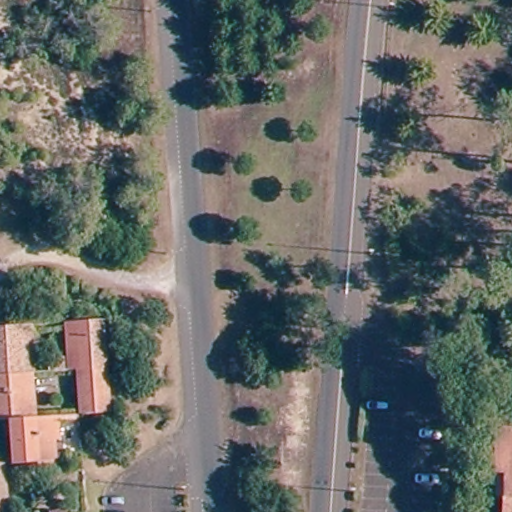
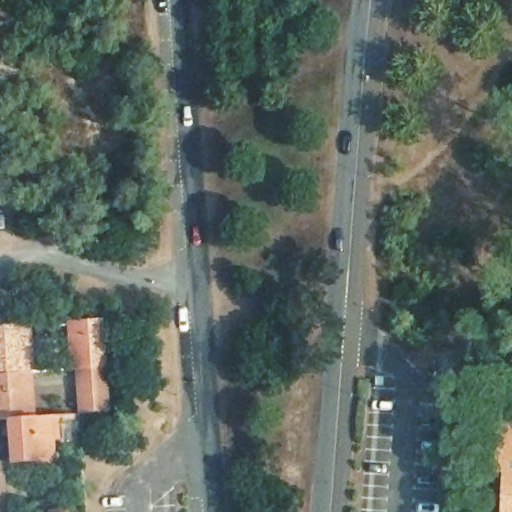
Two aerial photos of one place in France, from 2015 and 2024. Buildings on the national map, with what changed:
unchanged [(76,370),(73,324),(101,322),(103,368),(76,370)]
unchanged [(30,373),(0,375),(0,329),(27,327),(30,373)]
unchanged [(45,359),(63,359),(63,371),(45,372),(45,359)]
unchanged [(76,370),(103,368),(106,413),(79,414),(76,370)]
unchanged [(33,418),(0,421),(0,375),(30,373),(33,418)]
unchanged [(13,425),(0,426),(0,421),(33,418),(50,417),(53,461),(15,464),(13,425)]
unchanged [(488,478),(491,428),(512,429),(512,512),(497,512),(499,479),(488,478)]
unchanged [(6,512),(0,512),(0,465),(2,465),(6,512)]

